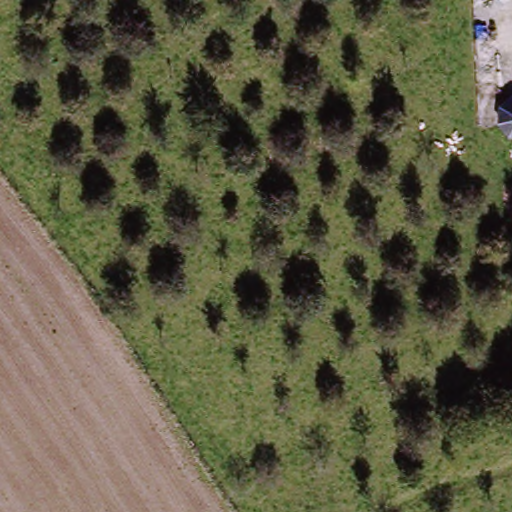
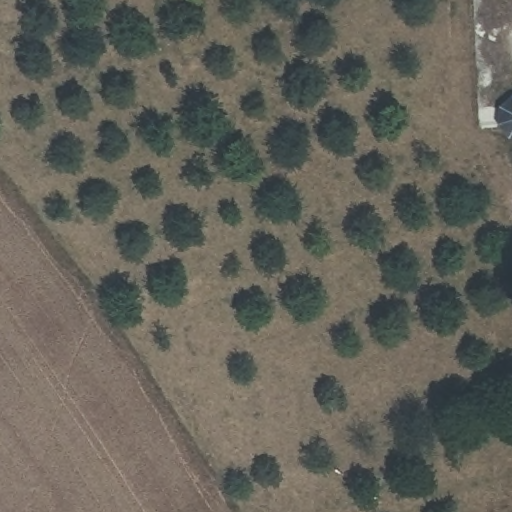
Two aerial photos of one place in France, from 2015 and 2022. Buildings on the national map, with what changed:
unchanged [(504,143),(490,126),(494,112),(511,99),(512,99),(512,145),(504,143)]

